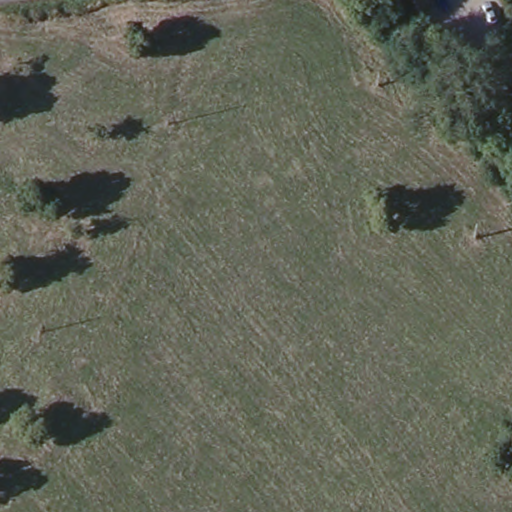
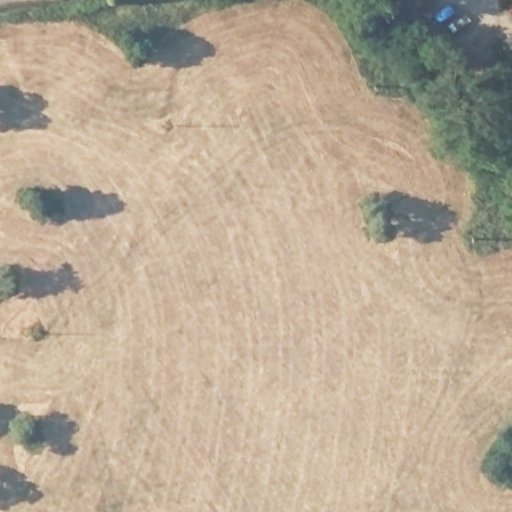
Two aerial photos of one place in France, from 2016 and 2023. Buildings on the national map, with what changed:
unchanged [(417,13),(410,0),(439,0),(439,1),(417,13)]

